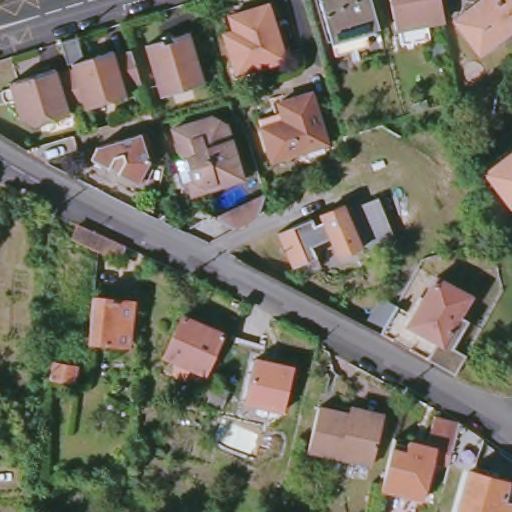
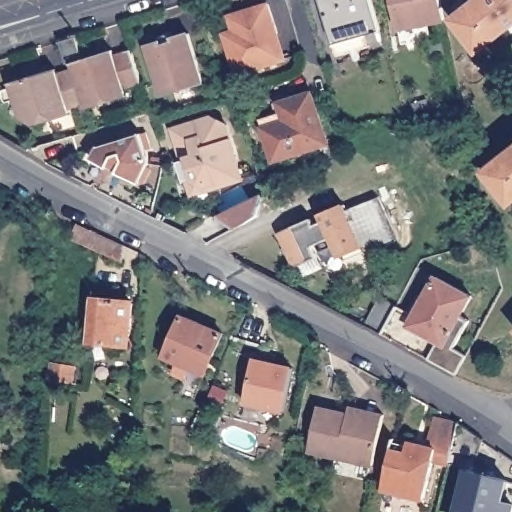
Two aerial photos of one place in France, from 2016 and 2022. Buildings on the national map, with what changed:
unchanged [(332,44),(319,0),(369,0),(378,31),(381,42),(335,55),(332,44)]
unchanged [(399,31),(393,0),(441,0),(445,21),(399,31)]
unchanged [(481,0),(512,0),(512,26),(479,52),(454,21),(481,0)]
unchanged [(234,67),(224,34),(234,31),(229,16),(241,14),(269,5),(278,31),(286,60),(278,62),(253,70),(237,76),(234,67)]
unchanged [(189,32),(206,83),(171,94),(162,97),(148,46),(157,42),(189,32)]
unchanged [(35,125),(21,117),(11,81),(58,68),(58,72),(74,67),(73,62),(69,62),(61,42),(78,37),(85,58),(114,49),(116,55),(130,51),(141,83),(125,89),(128,94),(94,105),(85,108),(84,104),(69,108),(71,113),(35,125)]
unchanged [(314,98),(328,150),(273,166),(263,132),(261,123),(281,117),(278,108),(314,98)]
unchanged [(181,171),(188,168),(178,141),(174,129),(214,117),(227,125),(242,175),(218,182),(219,189),(191,204),(181,171)]
unchanged [(92,159),(98,147),(143,133),(151,160),(137,183),(92,159)]
unchanged [(487,172),(512,152),(512,202),(511,204),(487,172)]
unchanged [(377,199),(394,238),(366,252),(364,245),(347,210),(377,199)]
unchanged [(220,217),(228,214),(259,202),(251,222),(227,233),(210,222),(220,217)]
unchanged [(364,245),(342,256),(333,238),(314,247),(319,257),(297,268),(281,234),(313,219),(316,222),(324,219),(321,215),(344,204),(364,245)]
unchanged [(125,260),(98,250),(75,242),(77,227),(101,234),(127,243),(125,260)]
unchanged [(398,310),(416,320),(439,282),(473,302),(461,321),(471,326),(454,353),(467,360),(457,378),(429,363),(438,347),(392,320),(398,310)]
unchanged [(93,297),(133,302),(127,346),(88,341),(93,297)]
unchanged [(173,378),(178,367),(164,361),(183,321),(223,338),(205,378),(191,372),(186,383),(173,378)]
unchanged [(284,414),(243,405),(254,357),(293,366),(284,414)]
unchanged [(51,378),(57,362),(78,368),(72,383),(51,378)]
unchanged [(311,452),(323,408),(351,416),(354,410),(387,417),(374,468),(311,452)]
unchanged [(396,441),(429,448),(438,418),(456,421),(456,422),(459,423),(461,425),(458,437),(449,470),(436,466),(426,503),(384,492),(396,441)]
unchanged [(458,437),(461,425),(486,442),(474,471),(489,476),(488,481),(512,488),(512,512),(459,512),(469,475),(449,470),(458,437)]

